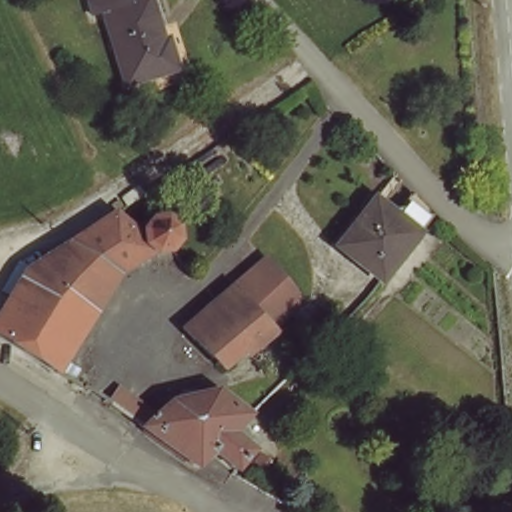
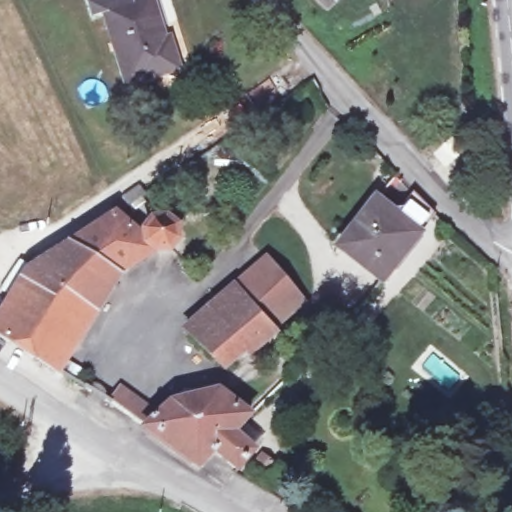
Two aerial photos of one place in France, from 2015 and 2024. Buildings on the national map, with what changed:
unchanged [(128,86),(107,14),(89,18),(85,0),(126,0),(129,10),(152,4),(162,43),(170,41),(180,75),(128,86)]
unchanged [(434,220),(379,286),(337,249),(375,205),(390,220),(411,196),(434,220)]
unchanged [(83,381),(71,372),(19,335),(9,328),(45,268),(132,210),(152,231),(160,224),(167,221),(175,221),(181,225),(185,230),(188,236),(187,244),(184,250),(177,254),(169,255),(132,276),(83,354),(97,362),(83,381)]
unchanged [(222,370),(185,325),(212,303),(267,260),(301,305),(222,370)]
unchanged [(265,449),(247,472),(227,457),(208,468),(156,428),(120,403),(129,390),(165,414),(179,394),(207,413),(225,390),(257,415),(279,431),(265,449)]

